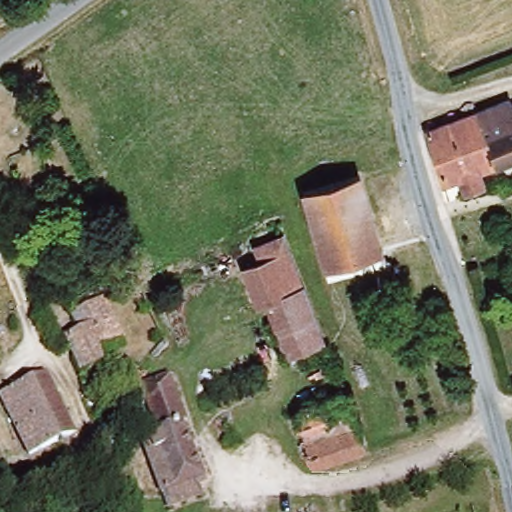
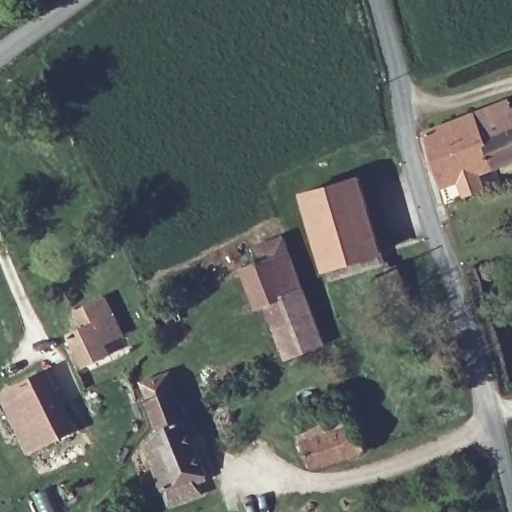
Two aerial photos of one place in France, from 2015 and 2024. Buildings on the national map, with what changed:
unchanged [(511,110),(512,115),(512,168),(475,180),(456,186),(438,191),(423,138),(511,110)]
unchanged [(381,267),(328,283),(314,246),(298,204),(352,184),(381,267)]
unchanged [(275,237),(329,340),(285,354),(262,303),(252,307),(235,271),(249,265),(243,253),(275,237)]
unchanged [(411,290),(390,297),(381,267),(401,259),(411,290)]
unchanged [(85,298),(103,292),(120,338),(105,344),(101,344),(106,360),(80,369),(68,334),(80,329),(71,303),(85,298)]
unchanged [(49,369),(68,440),(23,453),(4,381),(49,369)]
unchanged [(165,501),(159,488),(142,447),(146,429),(140,412),(129,389),(171,377),(185,409),(183,418),(203,471),(195,474),(200,488),(165,501)]
unchanged [(351,406),(361,449),(315,462),(302,422),(351,406)]

